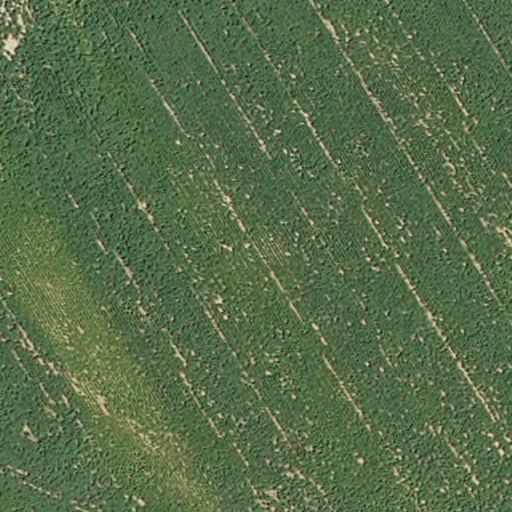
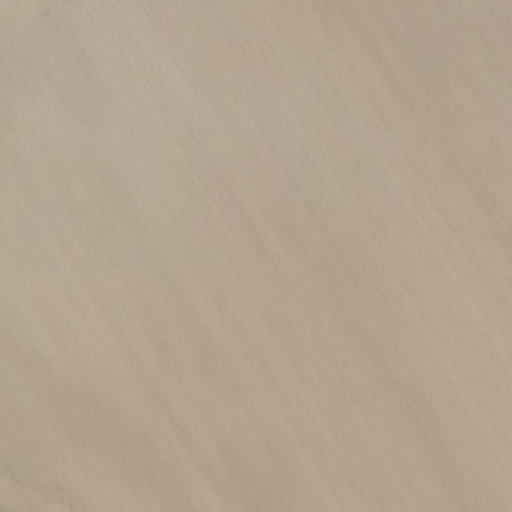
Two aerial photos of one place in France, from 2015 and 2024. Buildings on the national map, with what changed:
[]

